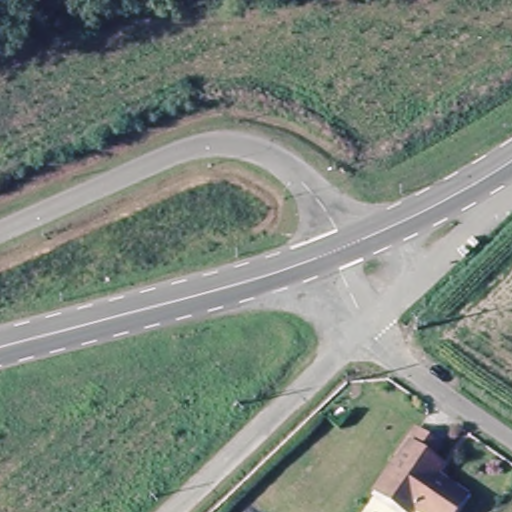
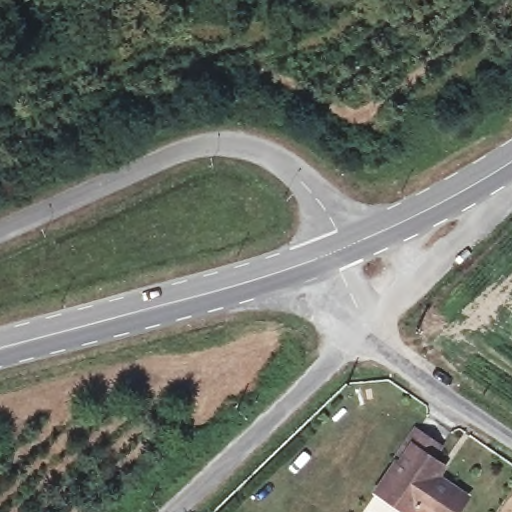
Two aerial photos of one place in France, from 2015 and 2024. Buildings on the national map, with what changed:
unchanged [(426,470),(440,481),(431,494),(435,497),(439,493),(464,509),(462,512),(388,512),(376,504),(390,485),(402,474),(393,467),(411,439),(436,456),(426,470)]

